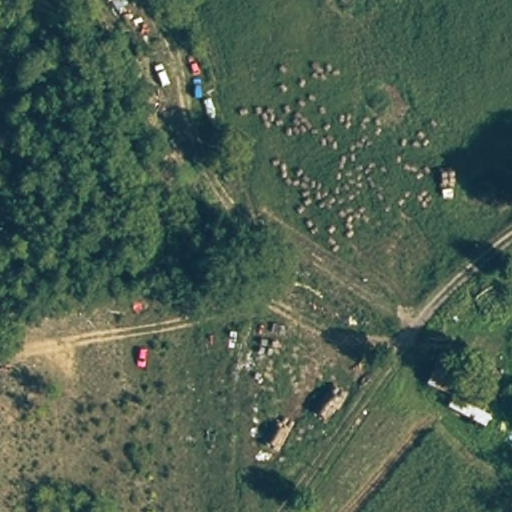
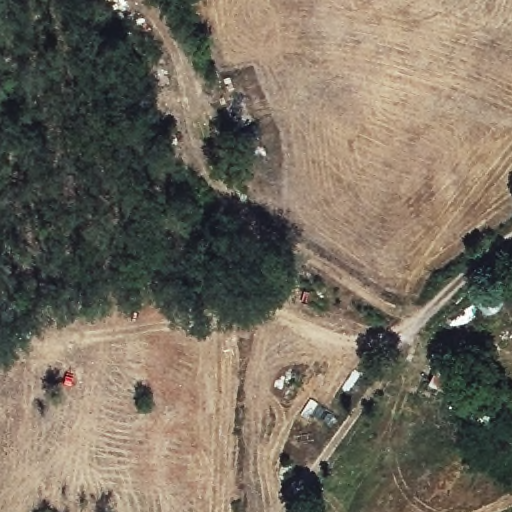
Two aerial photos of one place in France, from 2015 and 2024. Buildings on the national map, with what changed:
unchanged [(441,355),(470,368),(457,398),(428,385),(441,355)]

